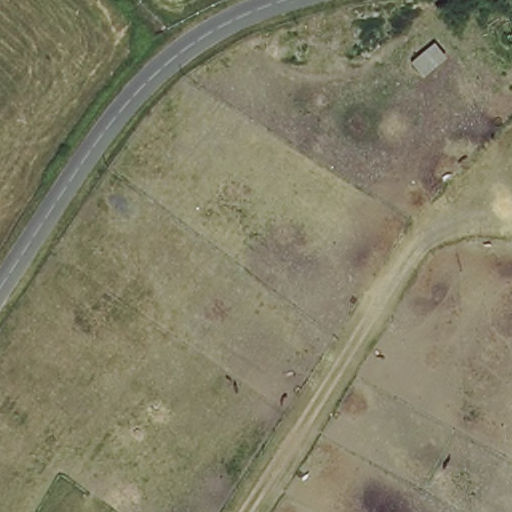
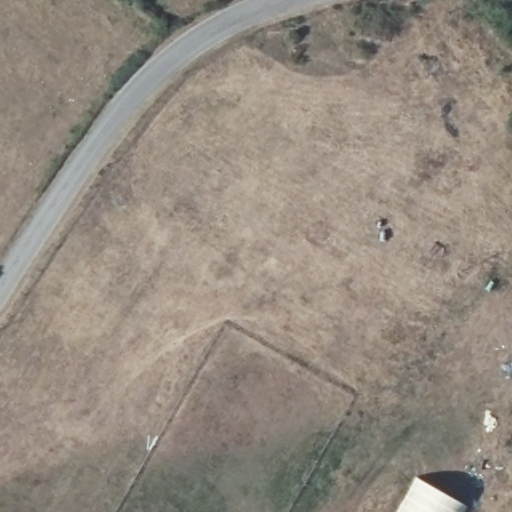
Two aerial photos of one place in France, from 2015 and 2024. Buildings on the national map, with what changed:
new [(416,477),(468,507),(465,512),(396,512),(416,477)]

